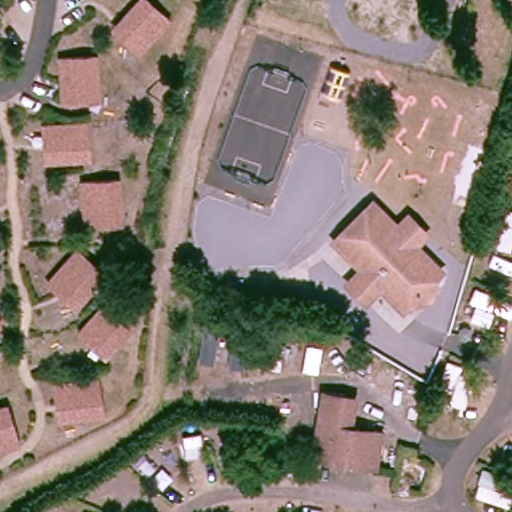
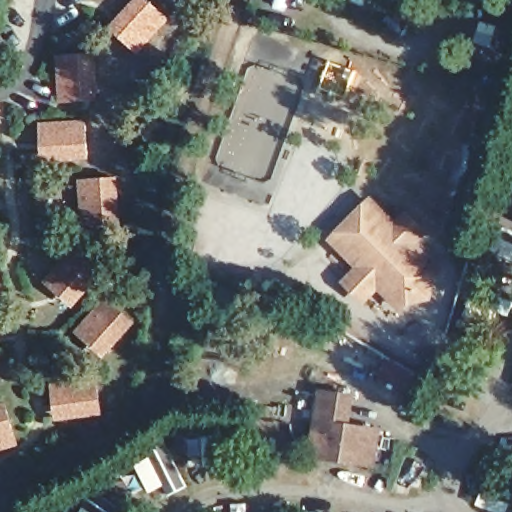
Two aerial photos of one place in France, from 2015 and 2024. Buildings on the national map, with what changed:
unchanged [(105,27),(113,19),(130,0),(141,0),(162,20),(135,48),(131,51),(105,27)]
unchanged [(55,101),(55,96),(55,95),(53,58),(90,55),(91,87),(92,100),(55,101)]
unchanged [(85,117),(87,154),(56,156),(42,156),(41,120),(46,120),(85,117)]
unchanged [(77,225),(77,220),(75,181),(111,179),(114,210),(114,224),(77,225)]
unchanged [(350,267),(325,240),(368,194),(391,220),(403,207),(430,234),(418,244),(439,270),(431,301),(406,305),(397,315),(375,293),(361,308),(337,282),(350,267)]
unchanged [(40,282),(45,278),(70,249),(97,273),(76,297),(67,306),(40,282)]
unchanged [(76,327),(80,323),(106,295),(133,318),(112,342),(104,352),(76,327)]
unchanged [(91,378),(96,414),(65,418),(52,420),(47,385),(53,383),(91,378)]
unchanged [(375,465),(370,465),(310,455),(314,416),(316,393),(343,397),(340,422),(364,426),(375,428),(380,429),(375,465)]
unchanged [(19,448),(0,453),(0,454),(0,405),(6,403),(19,448)]

